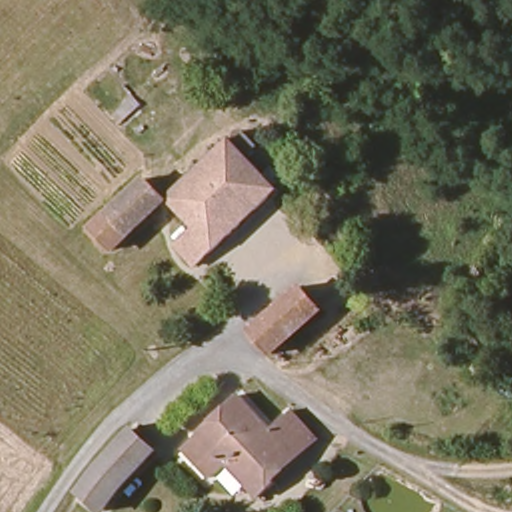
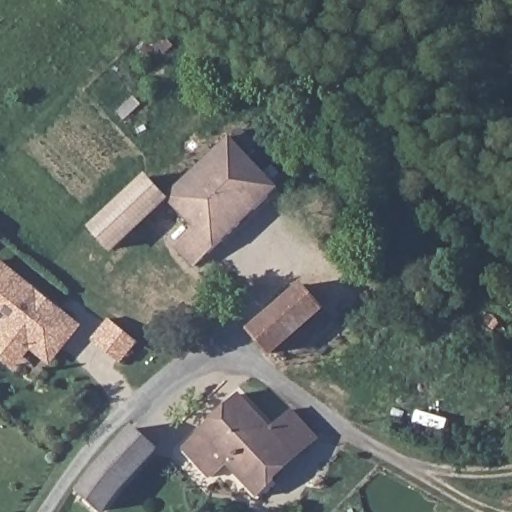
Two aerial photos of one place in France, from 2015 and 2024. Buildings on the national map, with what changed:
unchanged [(258,149),(252,155),(271,178),(279,169),(291,182),(282,191),(283,193),(199,268),(180,247),(197,229),(171,199),(244,130),(258,149)]
unchanged [(152,178),(171,199),(102,266),(80,243),(152,178)]
new [(31,351),(17,369),(0,356),(0,333),(4,329),(0,325),(0,259),(84,327),(51,367),(31,351)]
unchanged [(272,356),(252,331),(301,289),(321,313),(272,356)]
new [(92,339),(109,318),(140,344),(122,364),(92,339)]
unchanged [(183,448),(240,396),(268,429),(228,464),(207,482),(183,448)]
unchanged [(276,481),(257,499),(228,464),(268,429),(289,412),(307,434),(314,443),(276,481)]
unchanged [(136,434),(156,454),(130,481),(106,512),(87,494),(136,434)]

